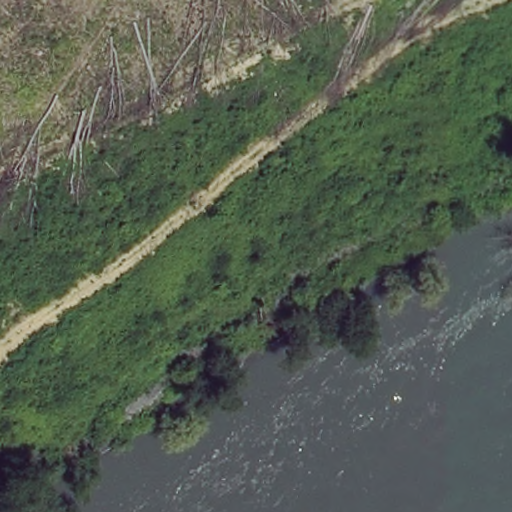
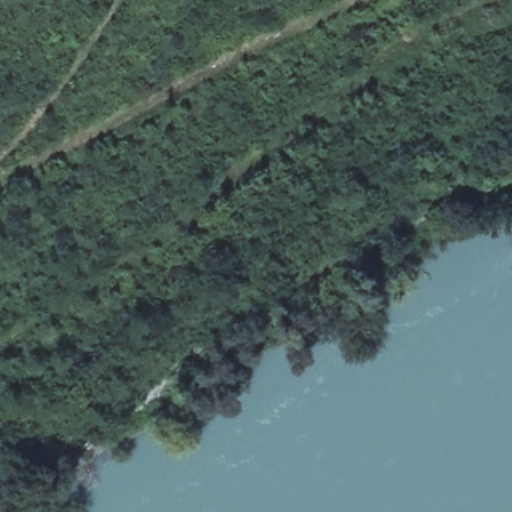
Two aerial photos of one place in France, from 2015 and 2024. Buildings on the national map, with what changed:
[]

